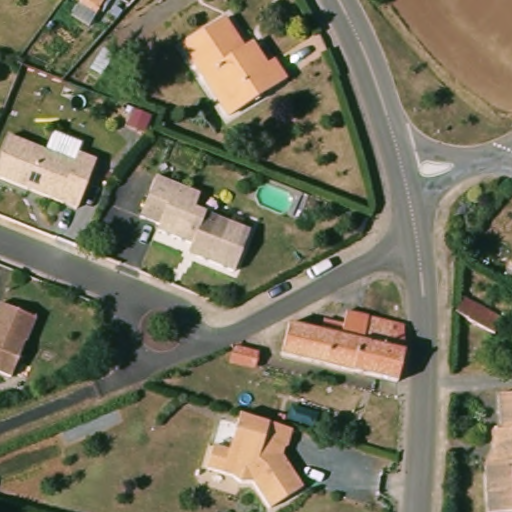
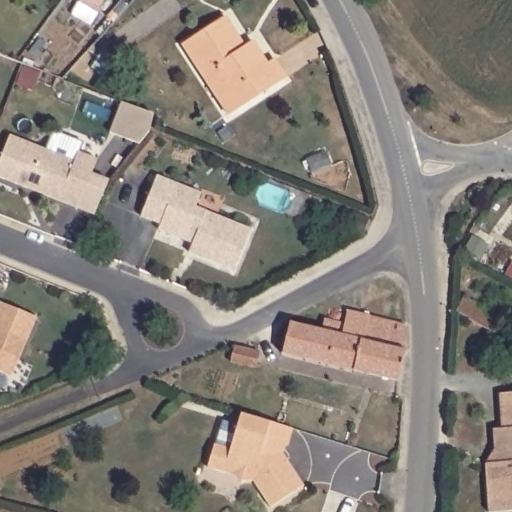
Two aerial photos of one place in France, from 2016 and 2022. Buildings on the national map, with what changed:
unchanged [(202,77),(182,45),(224,18),(243,47),(251,42),(266,65),(273,60),(285,78),(233,112),(227,116),(202,77)]
unchanged [(112,55),(100,76),(90,70),(103,49),(112,55)]
unchanged [(7,144),(10,137),(75,162),(79,153),(97,161),(91,176),(78,209),(0,179),(0,162),(7,144)]
unchanged [(191,244),(157,230),(159,225),(140,217),(156,177),(199,194),(194,208),(250,230),(233,271),(196,256),(188,253),(191,244)]
unchanged [(502,318),(494,333),(454,312),(462,297),(502,318)]
unchanged [(0,302),(36,317),(11,376),(0,372),(0,304),(0,302)]
unchanged [(288,318),(320,326),(323,315),(342,320),(346,307),(367,312),(403,320),(404,346),(397,377),(281,349),(288,318)]
unchanged [(257,353),(254,367),(229,362),(232,347),(257,353)]
unchanged [(499,468),(498,454),(493,455),(492,435),(500,434),(498,399),(512,398),(512,512),(487,512),(484,469),(499,468)]
unchanged [(302,482),(269,503),(252,477),(240,478),(230,470),(206,463),(213,440),(229,445),(240,408),(269,417),(292,424),(286,443),(284,442),(281,449),(302,482)]

